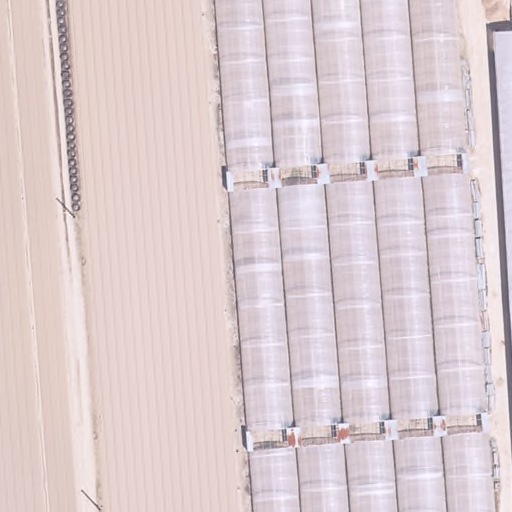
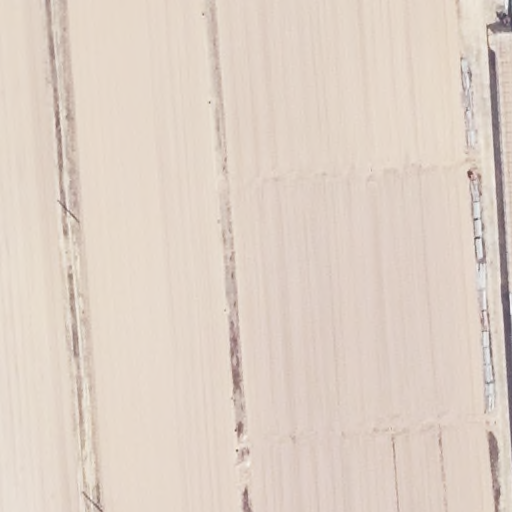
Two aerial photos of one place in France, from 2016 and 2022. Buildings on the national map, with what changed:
demolished [(487,30),(512,354),(512,512),(258,512),(220,0),(456,0),(458,31),(487,30)]
unchanged [(487,30),(512,28),(512,354),(487,30)]

